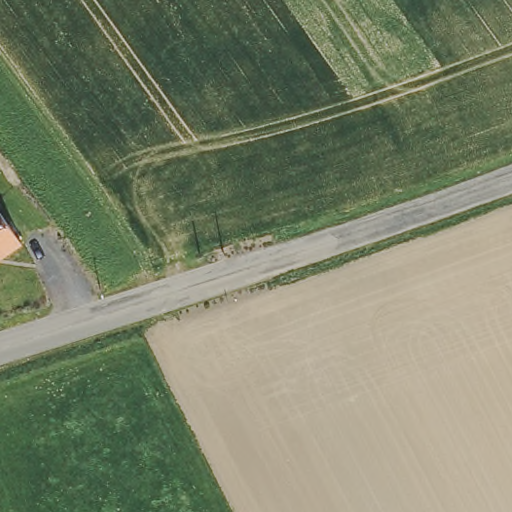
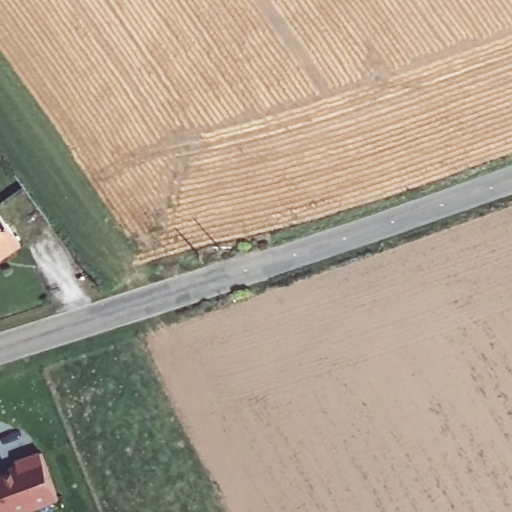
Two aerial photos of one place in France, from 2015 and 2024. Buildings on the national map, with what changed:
unchanged [(23,247),(9,256),(6,252),(0,256),(0,214),(23,247)]
new [(0,512),(0,471),(19,464),(17,459),(41,451),(60,501),(29,512),(0,512)]

